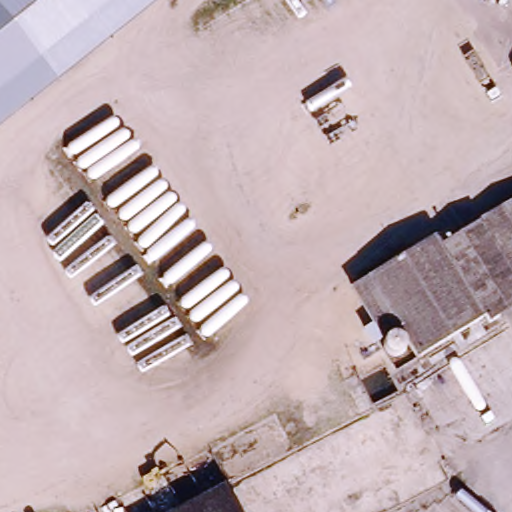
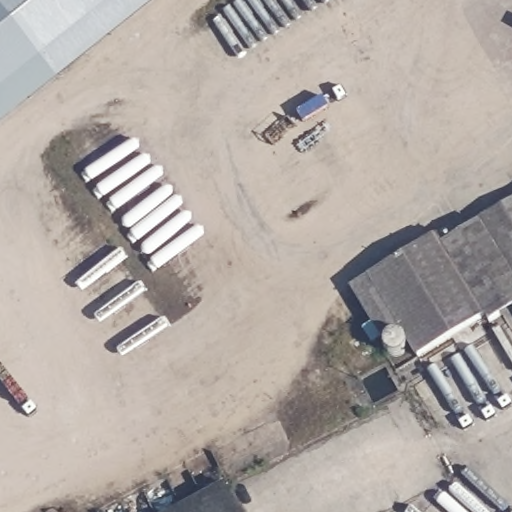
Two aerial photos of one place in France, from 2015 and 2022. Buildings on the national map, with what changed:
unchanged [(156,0),(0,124),(0,0),(156,0)]
unchanged [(512,198),(512,275),(477,218),(512,198)]
unchanged [(512,308),(489,322),(484,314),(416,357),(414,353),(398,327),(381,337),(371,344),(362,329),(371,322),(349,285),(437,235),(442,242),(477,218),(512,275),(512,308)]
unchanged [(235,498),(243,512),(209,512),(235,498)]

